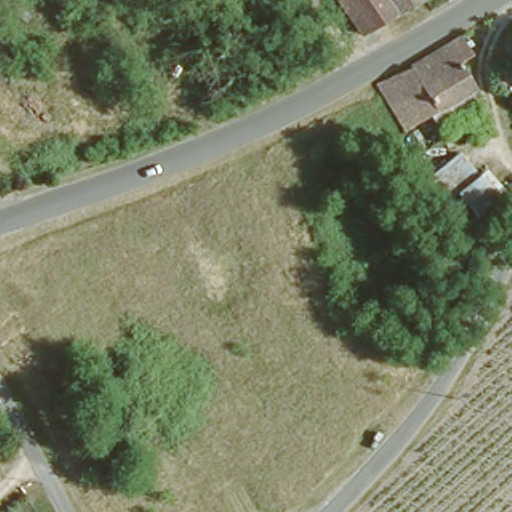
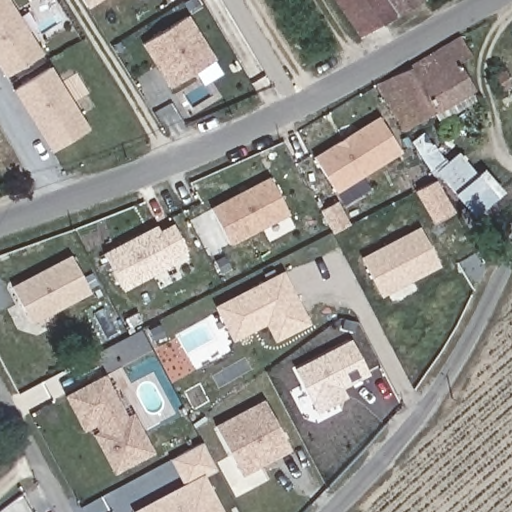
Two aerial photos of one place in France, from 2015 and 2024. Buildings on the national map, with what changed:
new [(7,76),(0,65),(0,0),(11,0),(45,52),(7,76)]
new [(88,0),(100,0),(92,5),(88,0)]
unchanged [(373,18),(359,26),(341,0),(400,0),(392,6),(373,18)]
new [(190,14),(218,59),(173,86),(144,42),(190,14)]
unchanged [(462,31),(471,45),(457,55),(473,80),(406,123),(376,75),(397,64),(459,28),(462,31)]
new [(52,65),(92,127),(54,151),(15,90),(52,65)]
unchanged [(505,76),(512,71),(512,84),(510,85),(505,76)]
new [(383,117),(402,151),(337,190),(317,156),(383,117)]
unchanged [(450,187),(460,198),(439,210),(418,180),(459,151),(471,168),(450,187)]
unchanged [(502,195),(473,214),(460,198),(450,187),(471,168),(477,162),(502,195)]
new [(276,177),(294,213),(236,243),(217,208),(276,177)]
new [(159,227),(161,230),(162,232),(175,225),(187,249),(175,256),(177,261),(125,289),(107,254),(148,232),(159,227)]
new [(425,225),(446,262),(388,294),(368,257),(425,225)]
new [(76,257),(94,292),(35,324),(17,289),(76,257)]
new [(286,274),(312,323),(280,340),(271,322),(237,340),(221,308),(286,274)]
new [(355,339),(372,373),(343,388),(350,398),(321,413),(297,369),(355,339)]
new [(120,400),(129,418),(135,415),(156,452),(119,472),(99,435),(105,432),(100,423),(87,430),(70,396),(107,376),(120,400)]
new [(267,400),(293,449),(245,475),(218,426),(267,400)]
new [(206,476),(225,512),(139,512),(206,476)]

